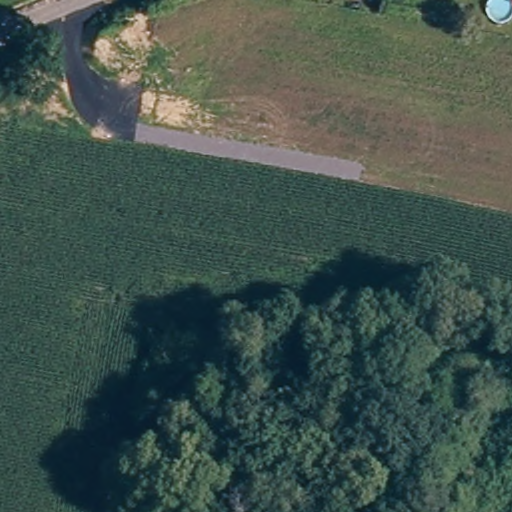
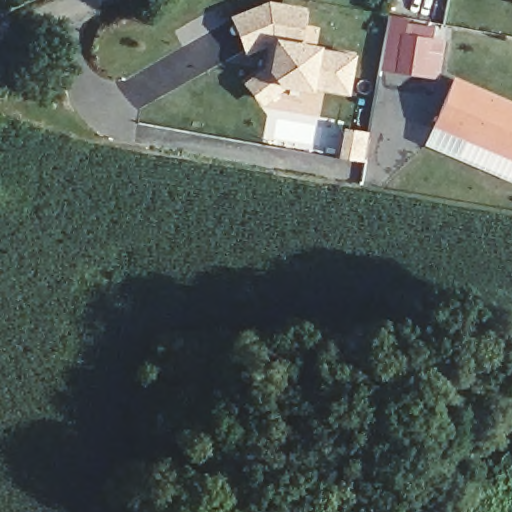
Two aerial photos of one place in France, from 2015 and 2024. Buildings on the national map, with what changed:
new [(298,41),(318,45),(356,53),(348,95),(310,86),(308,92),(285,87),(260,106),(241,82),(264,67),(267,45),(244,55),(228,14),(267,0),(272,0),(304,5),(298,41)]
new [(379,70),(389,14),(405,17),(403,22),(434,26),(432,38),(444,40),(438,78),(394,72),(379,70)]
new [(432,126),(453,77),(512,102),(512,162),(432,126)]

